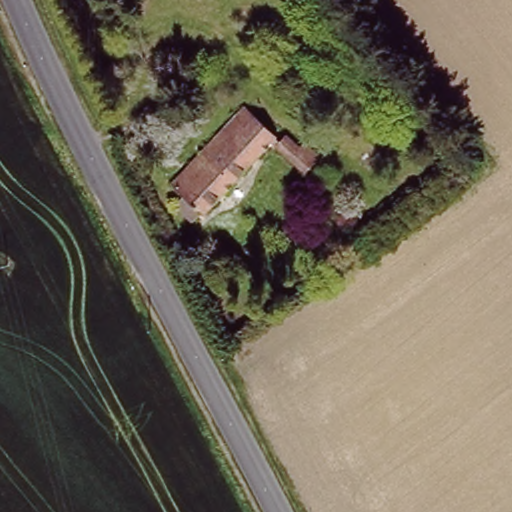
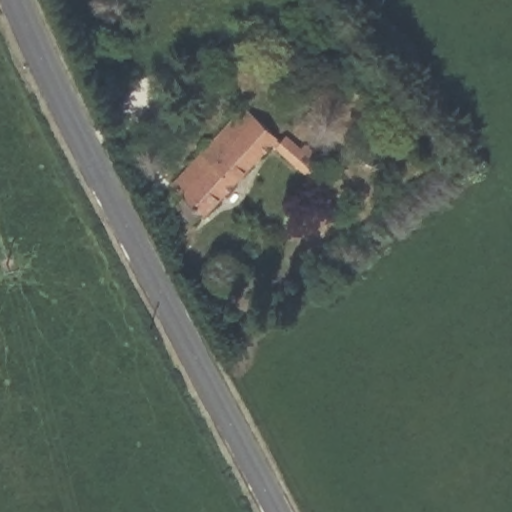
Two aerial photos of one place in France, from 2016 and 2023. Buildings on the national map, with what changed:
unchanged [(245,105),(277,134),(204,216),(200,213),(192,222),(181,213),(190,202),(172,187),(245,105)]
unchanged [(303,151),(293,161),(276,144),(286,134),(303,151)]

